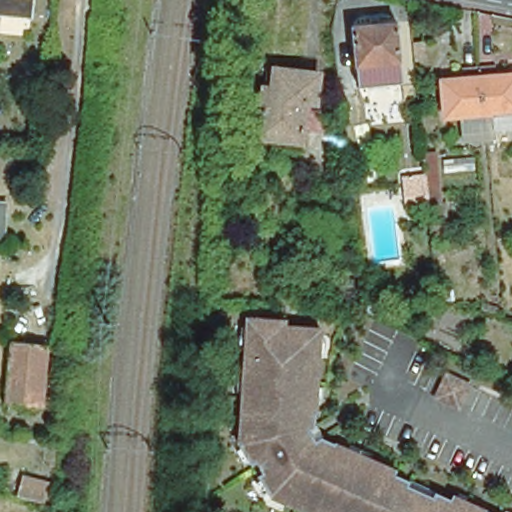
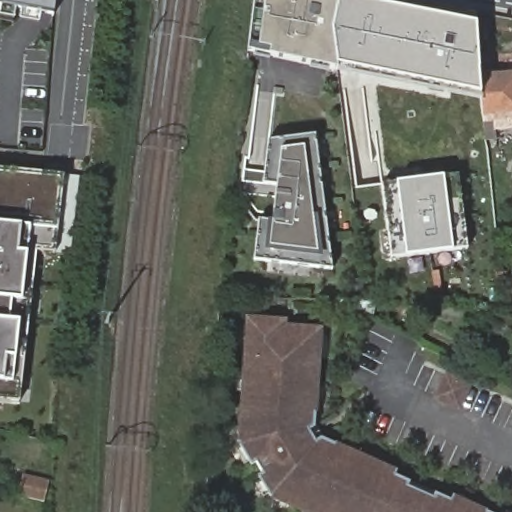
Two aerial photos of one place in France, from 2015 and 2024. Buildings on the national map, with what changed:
demolished [(30,17),(0,14),(0,20),(0,0),(32,0),(30,17)]
new [(59,19),(46,15),(44,25),(25,20),(0,15),(0,0),(61,0),(59,19)]
new [(332,30),(336,72),(245,52),(254,0),(339,0),(332,30)]
new [(335,69),(332,30),(339,0),(359,0),(476,23),(479,77),(475,78),(476,99),(335,69)]
demolished [(358,88),(353,27),(371,25),(378,25),(396,23),(398,43),(398,49),(401,81),(401,84),(358,88)]
demolished [(411,42),(422,41),(425,60),(413,61),(411,42)]
demolished [(253,137),(258,88),(267,89),(267,81),(269,69),(313,74),(310,103),(298,102),(294,142),(253,137)]
unchanged [(475,78),(495,76),(502,75),(512,75),(512,126),(490,128),(491,136),(480,137),(477,114),(476,104),(475,78)]
demolished [(476,104),(477,114),(455,115),(440,117),(436,81),(446,80),(453,79),(475,78),(476,104)]
demolished [(415,97),(415,114),(389,113),(390,97),(415,97)]
new [(333,270),(254,260),(260,216),(270,218),(273,185),(262,184),(268,141),(315,134),(333,270)]
demolished [(406,208),(404,184),(425,182),(422,158),(432,157),(436,201),(426,202),(427,206),(406,208)]
new [(64,176),(79,177),(70,256),(55,254),(37,252),(20,403),(0,401),(0,168),(64,176)]
new [(458,174),(467,248),(452,250),(405,256),(390,258),(381,184),(396,182),(443,176),(458,174)]
demolished [(4,207),(1,235),(0,235),(0,207),(4,207)]
unchanged [(355,308),(336,303),(336,299),(338,299),(366,299),(376,299),(373,317),(355,308)]
unchanged [(271,492),(259,472),(265,468),(261,462),(257,456),(252,460),(240,440),(242,396),(244,371),(247,314),(283,317),(283,322),(320,324),(312,429),(398,467),(396,470),(410,476),(408,480),(435,492),(437,488),(451,495),(453,491),(501,512),(318,512),(300,504),(271,492)]
demolished [(49,347),(43,407),(5,403),(10,344),(49,347)]
unchanged [(448,402),(436,397),(446,374),(470,385),(462,401),(459,407),(448,402)]
unchanged [(19,496),(24,476),(49,483),(43,503),(19,496)]
unchanged [(512,512),(505,512),(507,506),(512,508),(512,512)]

